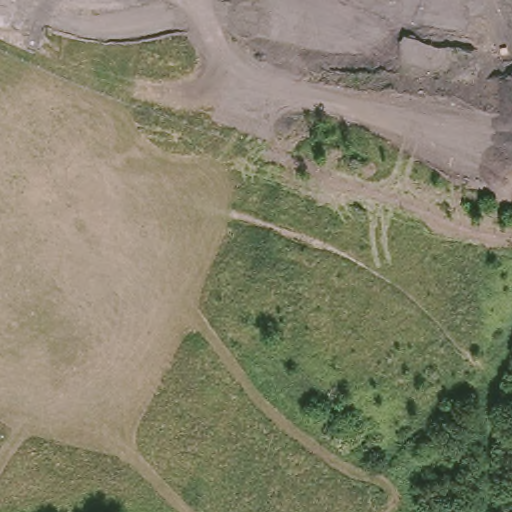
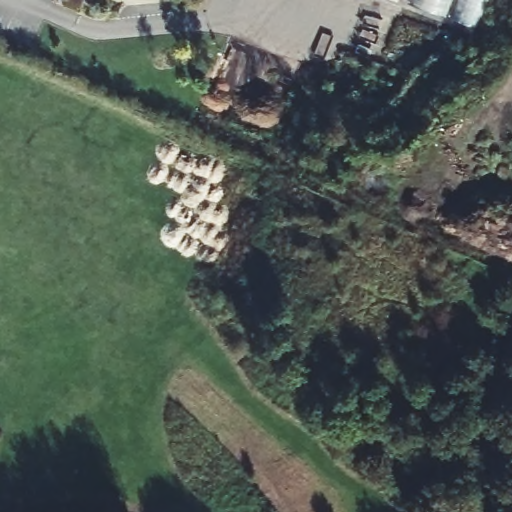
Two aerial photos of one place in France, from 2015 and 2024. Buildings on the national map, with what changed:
new [(402,0),(489,0),(478,30),(402,0)]

